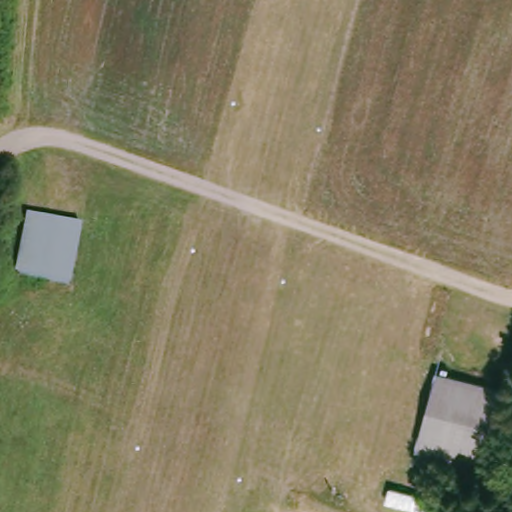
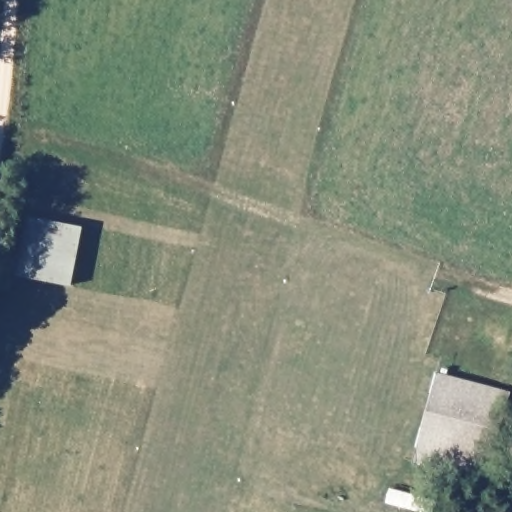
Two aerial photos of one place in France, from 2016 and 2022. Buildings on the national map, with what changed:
unchanged [(84,224),(72,283),(17,272),(27,213),(84,224)]
unchanged [(411,457),(432,367),(505,386),(485,474),(411,457)]

